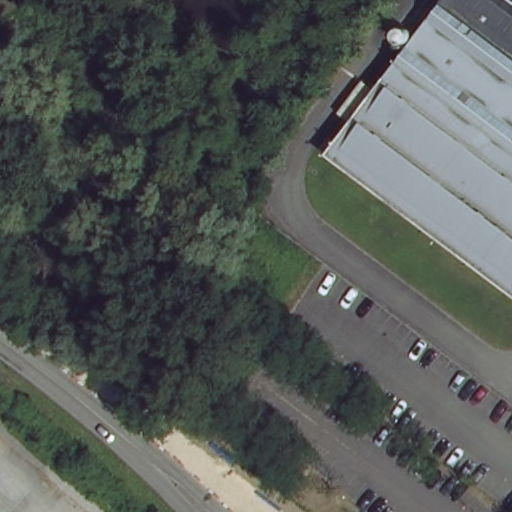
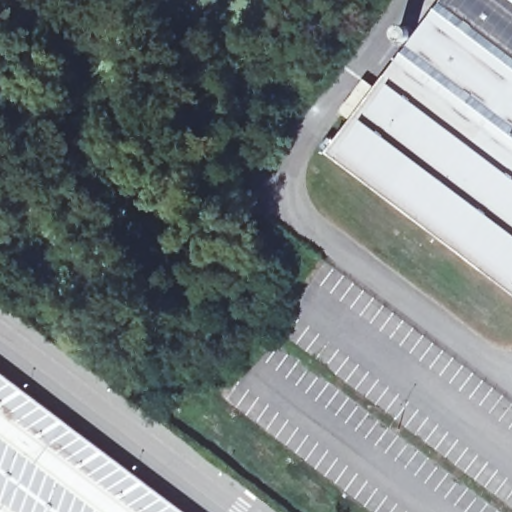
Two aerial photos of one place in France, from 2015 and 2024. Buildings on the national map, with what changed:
unchanged [(355,140),(342,126),(369,93),(378,103),(452,0),(512,0),(512,299),(333,167),(355,140)]
new [(173,512),(0,512),(0,381),(173,512)]

